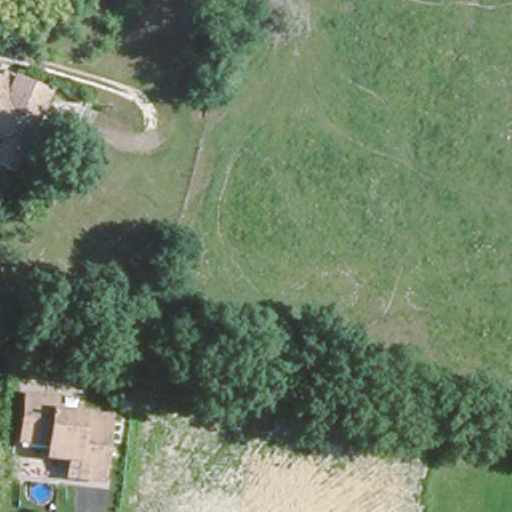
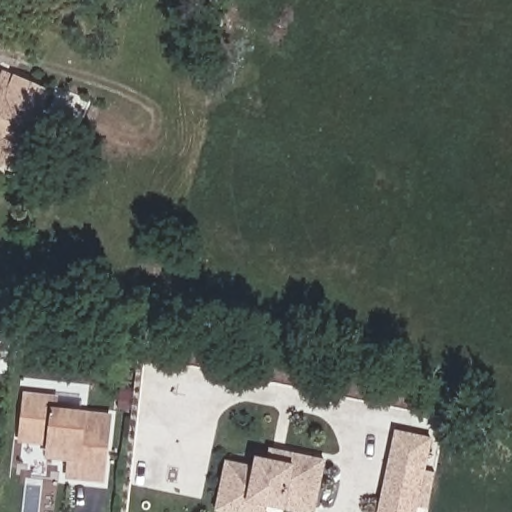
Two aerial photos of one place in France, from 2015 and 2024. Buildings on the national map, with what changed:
unchanged [(14,172),(0,166),(0,74),(1,71),(49,92),(14,172)]
new [(9,352),(6,374),(0,374),(0,352),(9,352)]
unchanged [(75,450),(52,447),(54,434),(25,431),(30,386),(57,389),(56,400),(114,407),(106,470),(84,468),(73,466),(75,450)]
new [(426,470),(435,472),(427,510),(417,508),(417,512),(377,512),(395,429),(433,438),(426,470)]
new [(297,512),(268,505),(267,512),(218,512),(216,511),(227,460),(255,465),(256,456),(268,459),(270,448),(327,460),(316,512),(297,512)]

